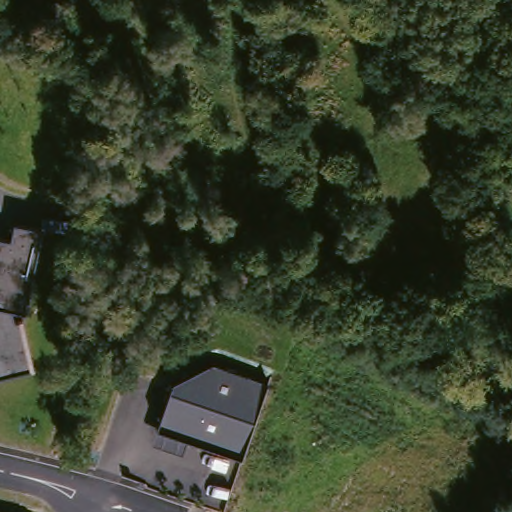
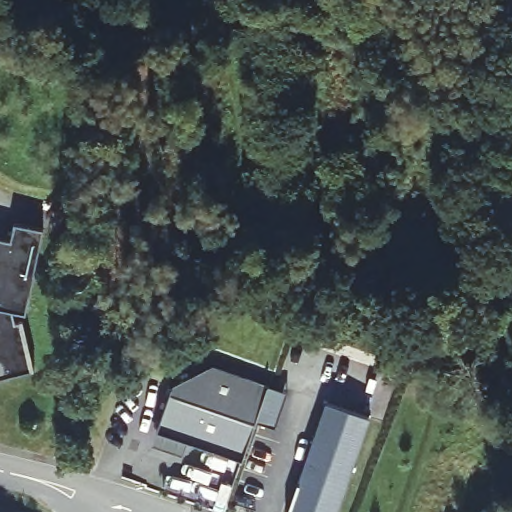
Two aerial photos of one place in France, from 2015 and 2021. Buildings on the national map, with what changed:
unchanged [(0,240),(9,241),(14,224),(44,232),(25,315),(16,312),(18,322),(24,321),(35,369),(0,379),(0,240)]
unchanged [(241,462),(156,430),(173,386),(213,366),(269,384),(241,462)]
new [(369,417),(337,512),(287,512),(324,402),(369,417)]

